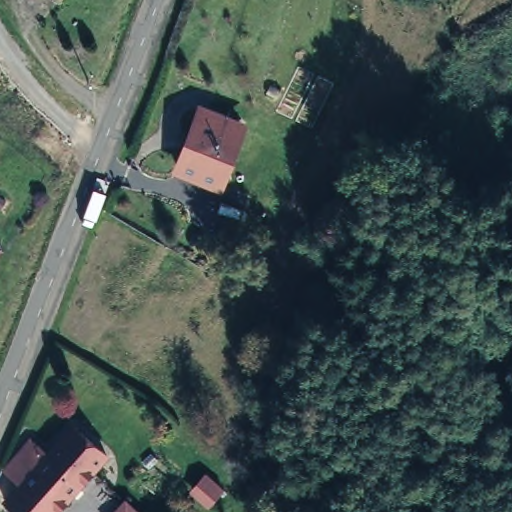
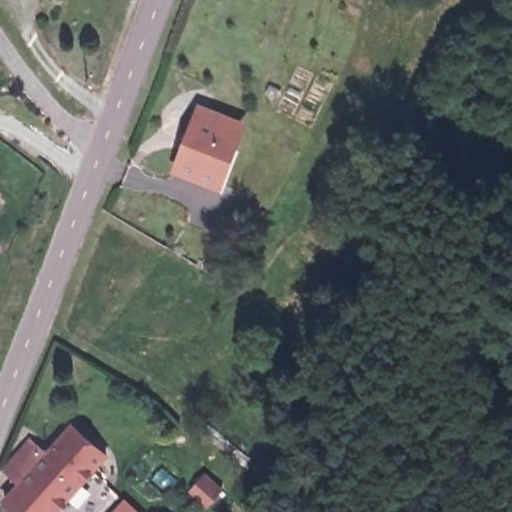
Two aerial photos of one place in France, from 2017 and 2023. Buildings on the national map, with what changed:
unchanged [(240,117),(217,177),(177,164),(200,104),(240,117)]
unchanged [(109,456),(58,512),(20,512),(9,501),(22,486),(5,471),(31,442),(48,456),(75,427),(109,456)]
unchanged [(222,488),(205,508),(187,490),(205,471),(222,488)]

